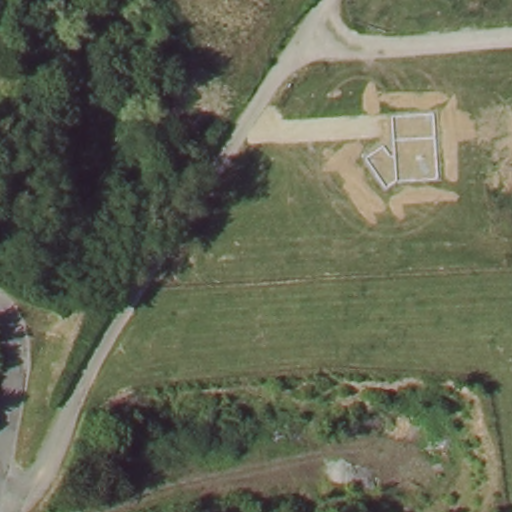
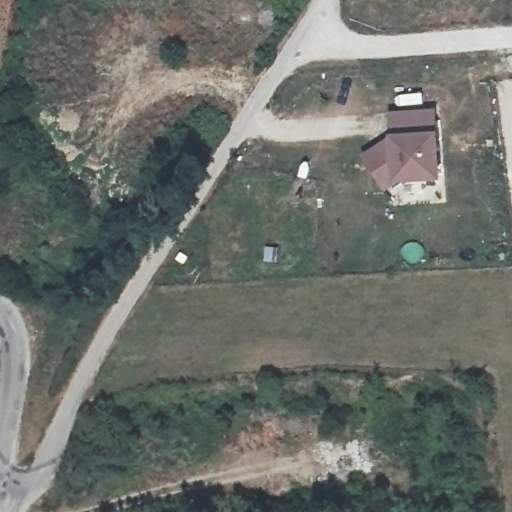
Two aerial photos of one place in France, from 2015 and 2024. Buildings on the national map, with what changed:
new [(393,184),(391,182),(393,185),(383,190),(361,157),(390,135),(388,112),(436,110),(437,133),(440,181),(393,184)]

